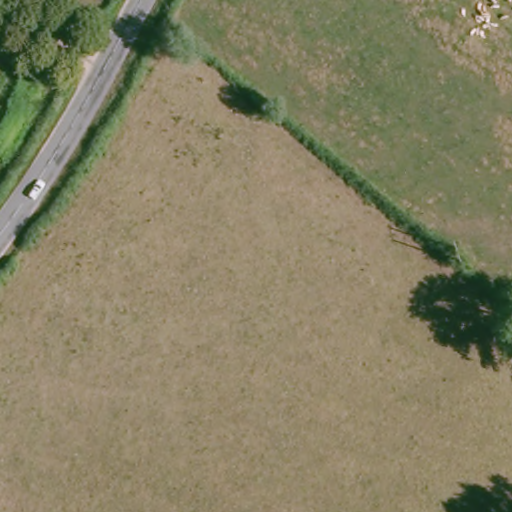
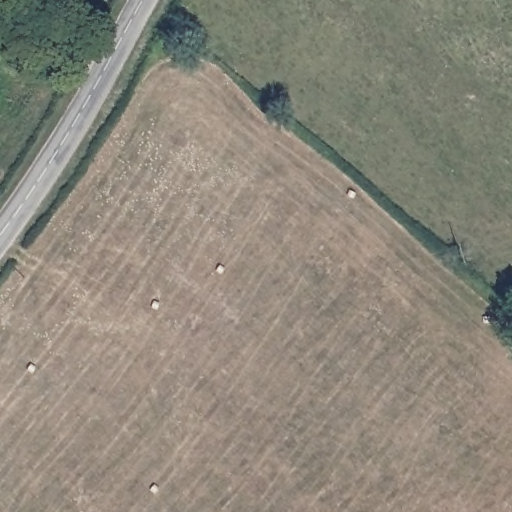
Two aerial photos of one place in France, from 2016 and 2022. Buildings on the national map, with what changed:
[]

